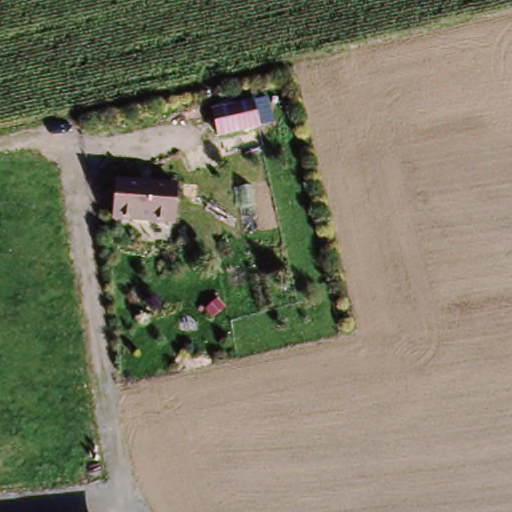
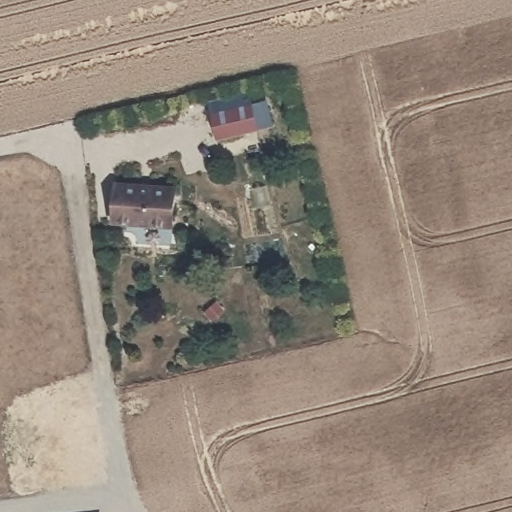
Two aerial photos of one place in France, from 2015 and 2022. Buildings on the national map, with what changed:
unchanged [(212,113),(253,103),(260,130),(219,139),(212,113)]
unchanged [(122,188),(179,192),(177,231),(120,227),(122,188)]

